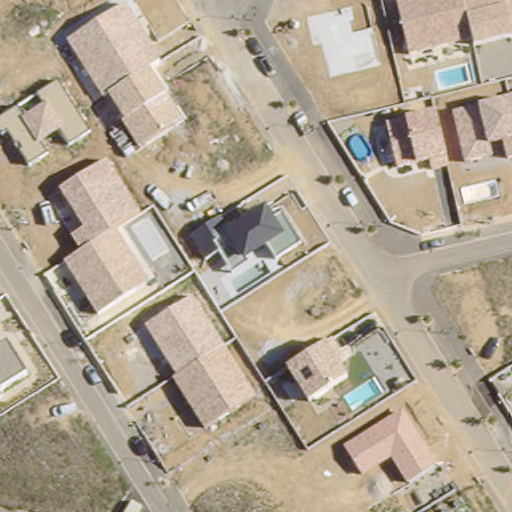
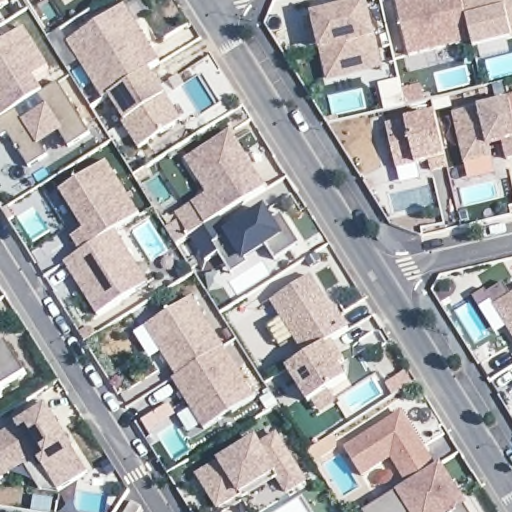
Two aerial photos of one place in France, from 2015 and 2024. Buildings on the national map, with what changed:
unchanged [(0,0),(6,0),(9,4),(0,10),(0,0)]
unchanged [(512,0),(512,39),(477,47),(474,41),(408,54),(395,0),(512,0)]
unchanged [(366,5),(380,67),(329,79),(321,45),(312,47),(305,19),(366,5)]
unchanged [(122,123),(125,120),(110,95),(102,100),(68,41),(127,6),(162,63),(151,70),(167,95),(183,122),(140,149),(122,123)]
new [(0,118),(0,46),(25,30),(51,69),(35,77),(45,93),(39,96),(27,101),(18,108),(0,119),(0,118)]
unchanged [(2,136),(0,133),(0,120),(18,108),(25,119),(44,105),(39,96),(58,84),(90,133),(70,146),(62,132),(42,144),(50,156),(30,168),(10,132),(2,136)]
new [(400,86),(405,106),(378,112),(374,92),(400,86)]
unchanged [(453,113),(480,107),(510,100),(512,100),(512,159),(508,160),(504,144),(492,146),(493,158),(465,165),(453,113)]
unchanged [(386,125),(407,120),(437,113),(447,157),(450,168),(432,172),(430,163),(418,166),(398,171),(386,125)]
new [(175,214),(205,194),(185,161),(232,132),(267,189),(225,217),(192,236),(175,214)]
unchanged [(65,262),(80,252),(72,238),(85,229),(60,189),(107,160),(141,213),(117,229),(150,282),(98,317),(65,262)]
unchanged [(192,236),(225,217),(230,228),(265,205),(275,221),(283,216),(301,244),(277,261),(267,248),(245,261),(247,263),(232,273),(220,253),(205,261),(192,236)]
new [(272,302),(312,277),(332,309),(336,306),(350,328),(329,342),(305,356),(272,302)]
new [(492,303),(490,299),(478,306),(472,295),(484,287),(487,293),(504,282),(510,292),(512,291),(512,335),(492,303)]
unchanged [(172,380),(177,377),(146,325),(193,296),(257,397),(206,429),(172,380)]
unchanged [(316,416),(308,403),(287,367),(329,342),(350,377),(327,391),(335,404),(316,416)]
unchanged [(28,376),(1,392),(3,397),(0,399),(0,350),(9,344),(28,376)]
new [(395,397),(387,385),(405,373),(413,385),(395,397)]
new [(87,472),(58,489),(37,455),(0,479),(0,435),(46,406),(87,472)]
unchanged [(344,447),(404,410),(438,466),(407,485),(392,459),(362,478),(344,447)]
new [(215,465),(255,439),(259,445),(275,435),(305,482),(287,493),(274,473),(218,508),(197,475),(205,471),(215,465)]
new [(407,485),(438,466),(443,464),(469,506),(467,508),(469,512),(368,512),(407,485)]

